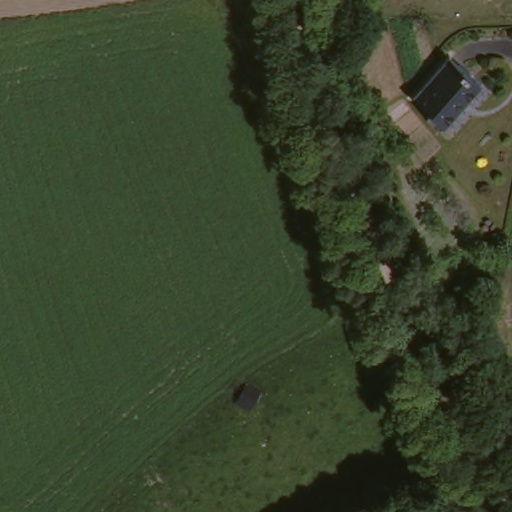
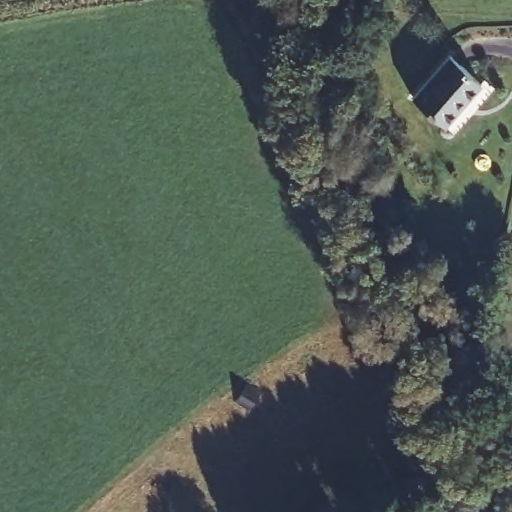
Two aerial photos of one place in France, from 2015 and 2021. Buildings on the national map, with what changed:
unchanged [(482,86),(451,126),(416,98),(449,59),(482,86)]

